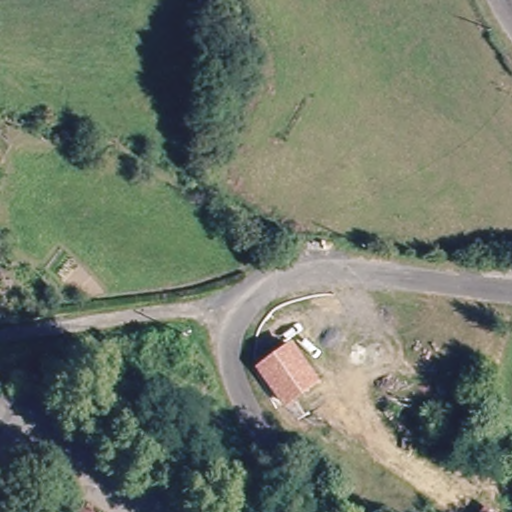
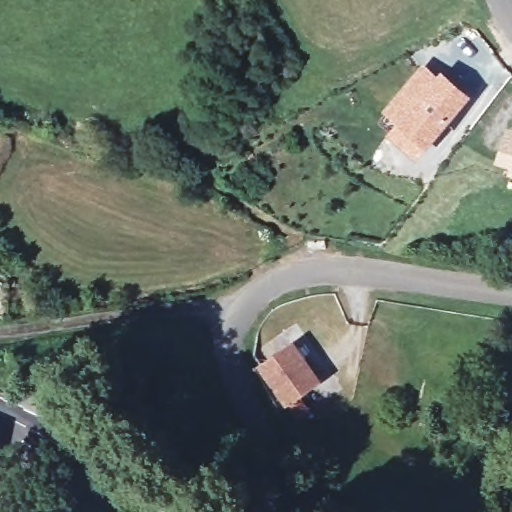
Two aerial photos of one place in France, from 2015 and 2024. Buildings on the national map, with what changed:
new [(438,73),(442,69),(472,95),(429,145),(418,158),(388,132),(398,122),(384,108),(423,62),(438,73)]
new [(508,174),(510,167),(496,162),(506,126),(512,128),(512,175),(508,174)]
unchanged [(320,380),(286,412),(256,377),(293,341),(320,380)]

